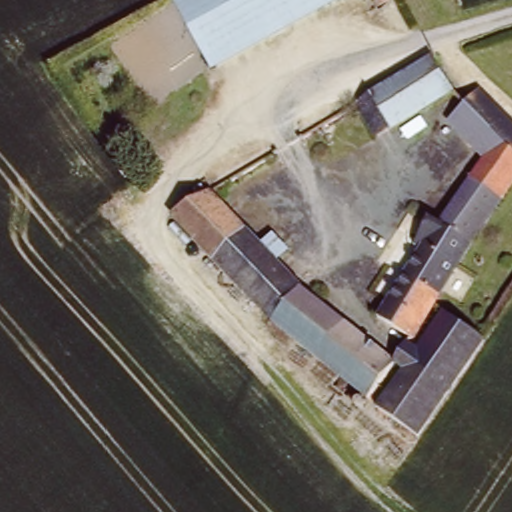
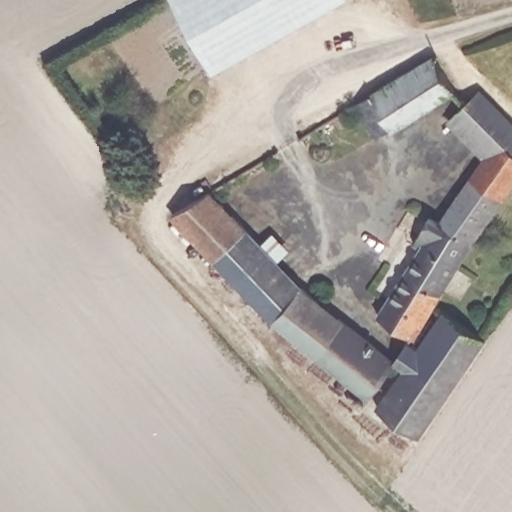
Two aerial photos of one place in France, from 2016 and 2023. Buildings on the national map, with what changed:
unchanged [(213,61),(176,0),(318,0),(213,61)]
unchanged [(397,132),(395,129),(380,139),(360,107),(436,56),(460,92),(397,132)]
unchanged [(412,337),(380,314),(427,244),(420,239),(433,218),(442,223),(486,157),(452,121),(475,91),(512,124),(512,193),(412,337)]
unchanged [(227,186),(232,194),(225,199),(324,301),(396,363),(372,401),(277,323),(177,216),(227,186)]
unchanged [(425,438),(382,409),(405,371),(396,363),(410,342),(421,349),(445,310),(488,336),(425,438)]

